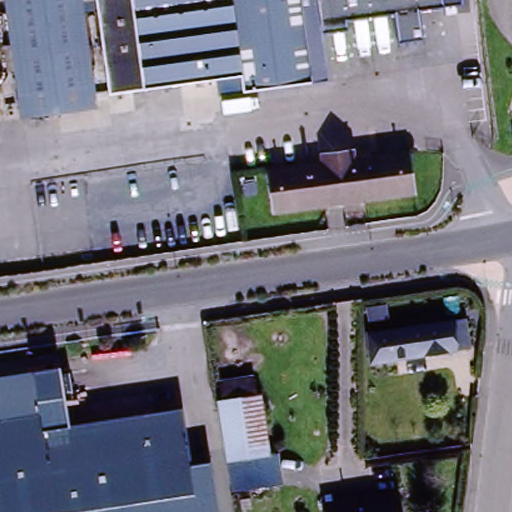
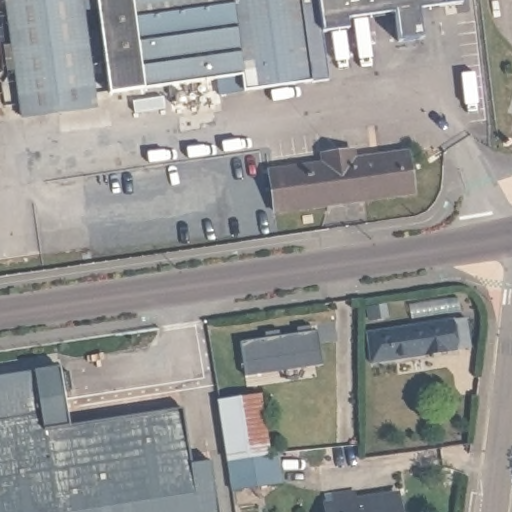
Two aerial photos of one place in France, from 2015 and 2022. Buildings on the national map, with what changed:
unchanged [(462,5),(345,21),(347,31),(323,32),(325,82),(245,91),(243,72),(94,95),(95,109),(21,111),(11,0),(461,0),(462,5)]
unchanged [(412,196),(275,215),(269,176),(322,169),(321,160),(353,156),(354,164),(406,157),(412,196)]
unchanged [(477,316),(479,331),(455,335),(453,320),(477,316)]
unchanged [(450,320),(455,350),(374,361),(370,333),(450,320)]
new [(265,340),(264,335),(278,332),(279,338),(296,335),(296,330),(309,327),(312,345),(319,344),(322,367),(252,377),(246,342),(265,340)]
unchanged [(57,365),(62,406),(66,424),(182,406),(191,464),(192,467),(212,463),(220,512),(0,512),(0,372),(30,368),(57,365)]
unchanged [(256,388),(266,450),(228,456),(226,456),(216,394),(218,393),(256,388)]
unchanged [(331,500),(350,497),(351,506),(394,500),(395,512),(322,512),(322,510),(332,509),(331,500)]

